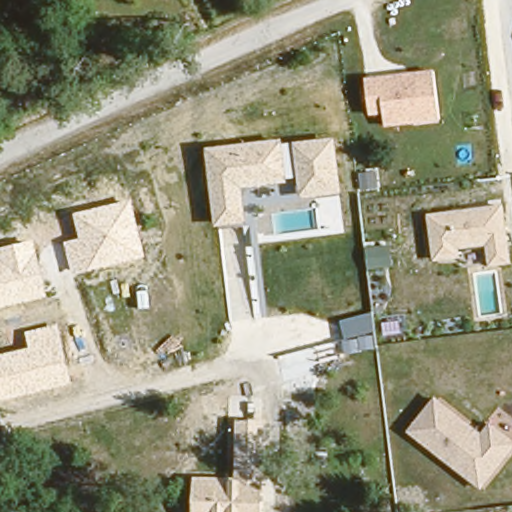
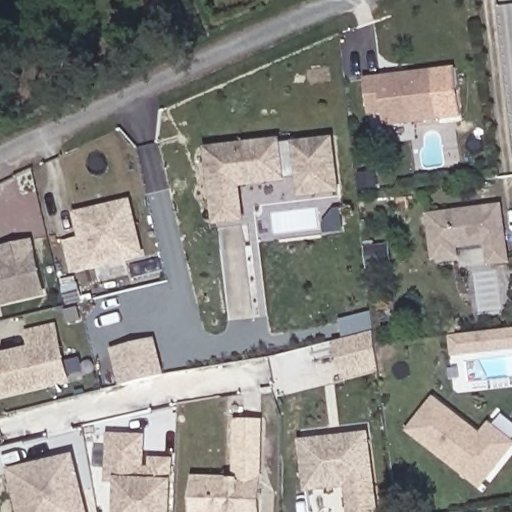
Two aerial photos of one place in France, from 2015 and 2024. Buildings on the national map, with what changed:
unchanged [(442,121),(385,127),(383,115),(371,115),(367,78),(437,71),(442,121)]
unchanged [(303,199),(300,178),(243,187),(249,222),(217,227),(208,148),(284,137),(286,144),(337,139),(344,194),(303,199)]
unchanged [(147,257),(75,273),(68,243),(81,240),(77,213),(133,200),(147,257)]
unchanged [(512,265),(489,266),(485,246),(460,248),(461,258),(435,262),(428,214),(505,205),(512,265)]
unchanged [(47,296),(0,307),(0,259),(1,258),(0,254),(0,246),(36,239),(47,296)]
unchanged [(72,382),(0,400),(0,353),(31,345),(29,333),(60,327),(72,382)]
new [(512,345),(452,352),(450,335),(512,328),(512,345)]
new [(369,333),(373,368),(340,376),(336,342),(369,333)]
new [(150,338),(159,372),(120,382),(111,348),(150,338)]
unchanged [(407,431),(435,396),(482,432),(490,421),(512,439),(512,453),(482,489),(407,431)]
new [(374,512),(349,512),(345,484),(306,489),(300,442),(364,434),(374,512)]
new [(114,512),(115,480),(105,480),(106,435),(139,436),(137,468),(147,468),(148,459),(167,460),(165,512),(114,512)]
unchanged [(238,448),(238,512),(171,512),(170,477),(210,477),(210,448),(238,448)]
unchanged [(270,449),(269,512),(238,512),(238,448),(270,449)]
new [(84,512),(20,512),(10,470),(71,455),(84,512)]

